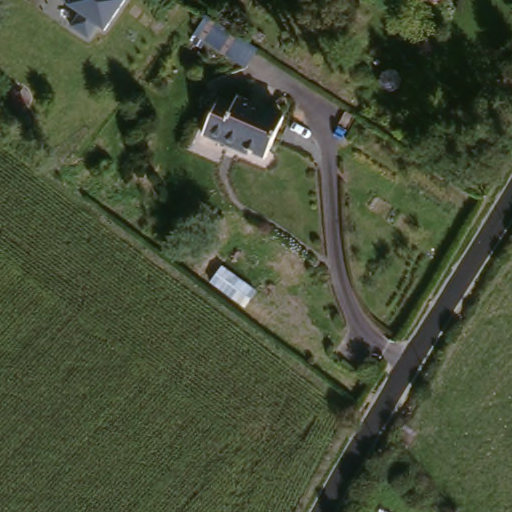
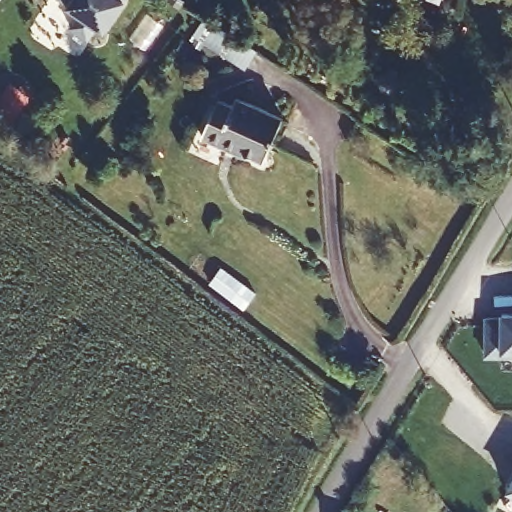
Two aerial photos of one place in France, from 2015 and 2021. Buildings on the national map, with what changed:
unchanged [(70,27),(79,14),(67,5),(68,3),(62,0),(125,0),(104,32),(97,27),(88,40),(70,27)]
unchanged [(223,95),(239,102),(242,94),(289,113),(271,158),(208,132),(223,95)]
new [(500,316),(500,312),(512,313),(512,354),(484,354),(484,316),(500,316)]
new [(512,465),(512,468),(510,467),(512,465)]
new [(512,473),(512,502),(510,502),(503,478),(511,475),(512,473)]
unchanged [(360,512),(341,512),(345,503),(360,512)]

